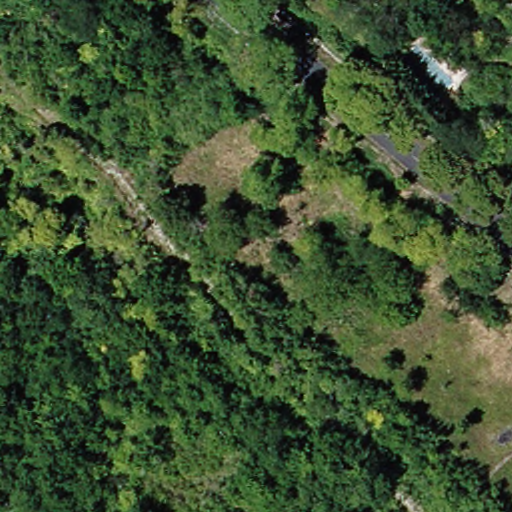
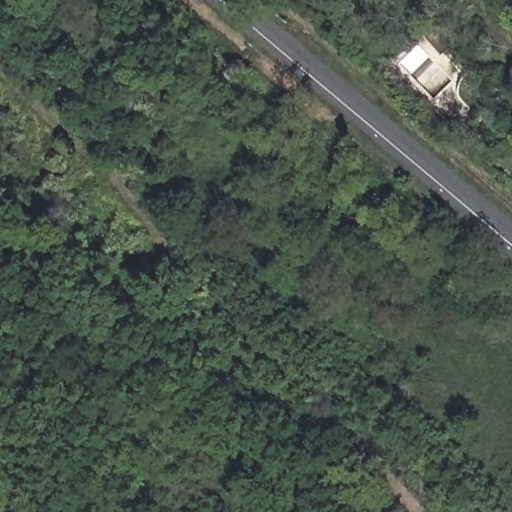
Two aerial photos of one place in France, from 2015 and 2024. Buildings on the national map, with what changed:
unchanged [(137,275),(95,245),(109,224),(152,254),(137,275)]

